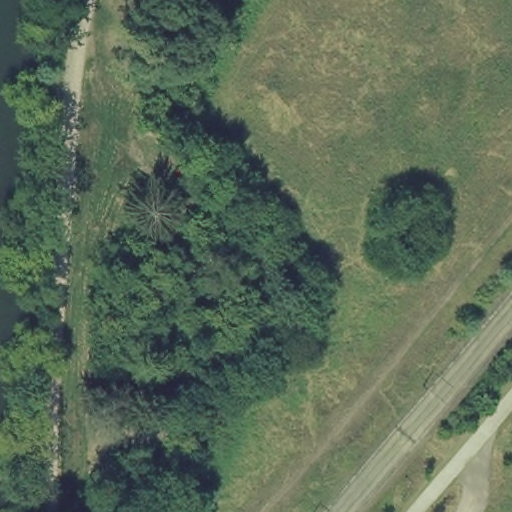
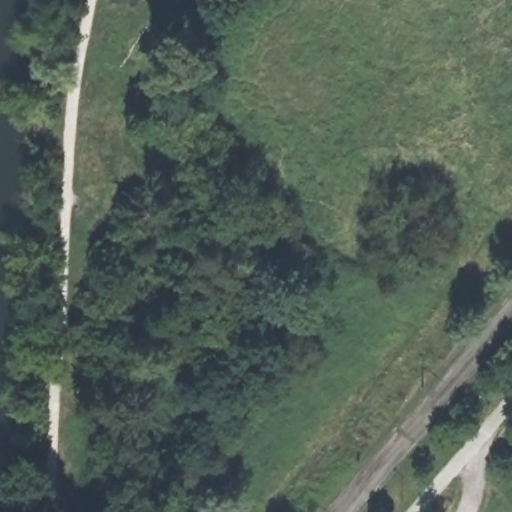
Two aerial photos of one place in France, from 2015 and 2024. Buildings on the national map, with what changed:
[]

